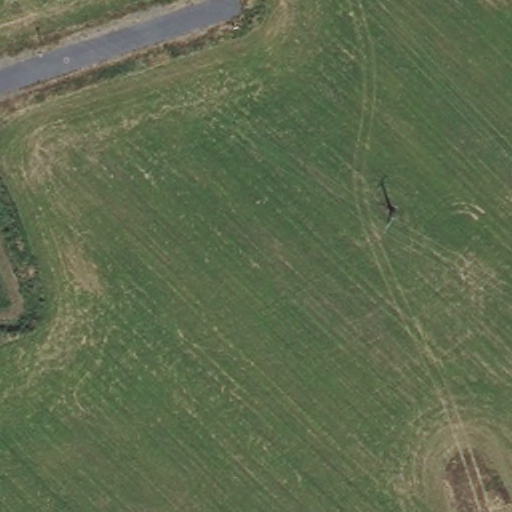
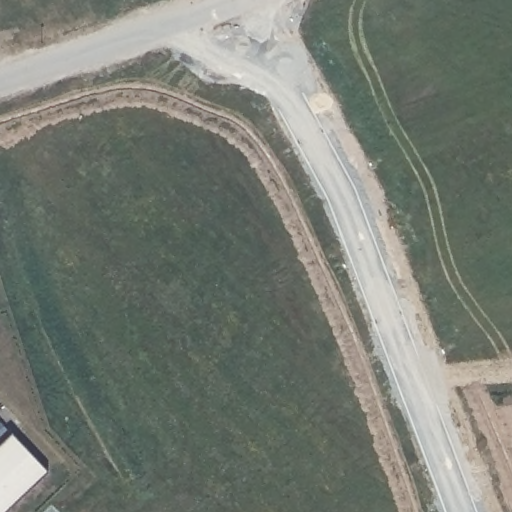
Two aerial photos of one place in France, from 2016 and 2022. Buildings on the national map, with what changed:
new [(6,428),(7,427),(49,470),(5,512),(0,512),(0,422),(6,428)]

